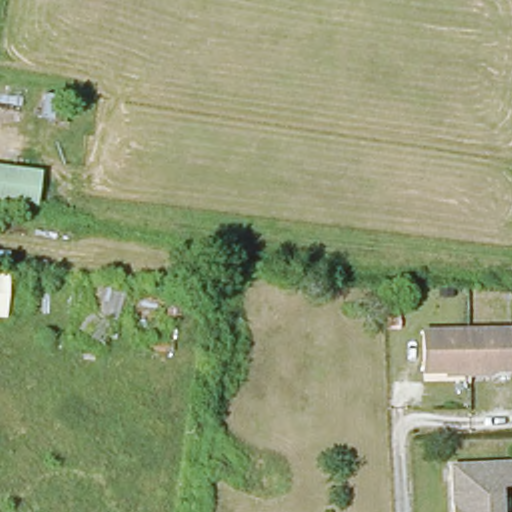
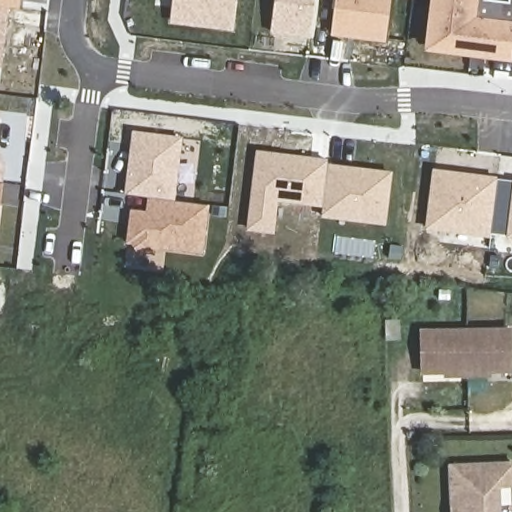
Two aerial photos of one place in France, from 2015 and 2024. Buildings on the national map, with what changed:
new [(0,68),(0,0),(20,0),(18,9),(9,8),(2,69),(0,68)]
new [(170,24),(173,0),(238,0),(233,31),(170,24)]
new [(270,34),(275,0),(316,0),(311,39),(270,34)]
new [(330,35),(335,0),(391,0),(386,43),(330,35)]
new [(498,45),(496,56),(437,47),(438,38),(426,36),(430,4),(437,5),(438,0),(512,0),(512,43),(511,47),(498,45)]
new [(182,137),(175,201),(147,197),(125,194),(132,130),(182,137)]
new [(275,200),(271,231),(245,227),(253,150),(327,160),(326,162),(321,205),(275,200)]
new [(6,162),(3,184),(0,210),(0,161),(6,162)]
new [(385,224),(320,216),(321,205),(326,162),(392,171),(385,224)]
demolished [(42,173),(38,210),(0,204),(0,167),(42,173)]
new [(497,179),(512,180),(512,189),(506,236),(490,234),(489,238),(424,230),(433,169),(497,176),(497,179)]
new [(512,187),(512,239),(506,238),(512,187)]
new [(203,253),(152,247),(151,254),(136,252),(132,245),(125,244),(130,209),(146,211),(147,197),(210,205),(203,253)]
unchanged [(6,320),(0,319),(0,273),(10,273),(6,320)]
unchanged [(510,328),(511,368),(423,371),(423,330),(510,328)]
unchanged [(450,468),(512,465),(512,487),(498,487),(499,512),(453,512),(452,510),(451,482),(450,468)]

